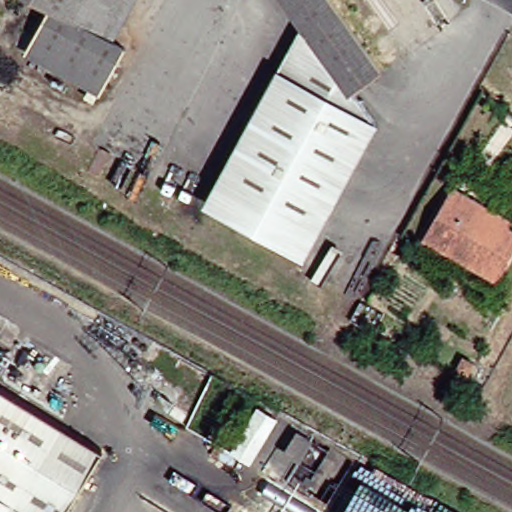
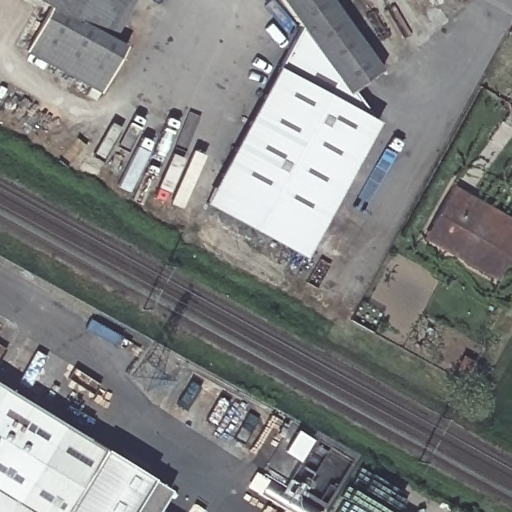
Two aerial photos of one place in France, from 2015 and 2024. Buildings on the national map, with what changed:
unchanged [(121,46),(96,91),(20,50),(45,5),(35,0),(130,0),(109,39),(121,46)]
unchanged [(348,89),(373,119),(313,229),(215,176),(296,26),(277,0),(327,0),(376,68),(348,89)]
unchanged [(299,255),(201,202),(215,176),(313,229),(299,255)]
unchanged [(433,222),(453,187),(468,196),(512,220),(508,227),(512,230),(512,249),(496,277),(442,247),(425,237),(433,222)]
unchanged [(473,363),(468,371),(460,366),(464,358),(473,363)]
unchanged [(59,512),(0,512),(0,388),(98,448),(59,512)]
demolished [(276,419),(250,461),(232,450),(258,408),(276,419)]
unchanged [(313,440),(300,460),(285,451),(298,431),(313,440)]
new [(168,491),(156,512),(59,512),(98,448),(150,481),(168,491)]

